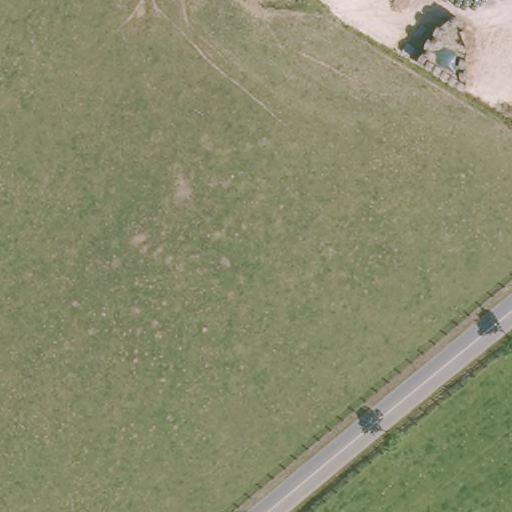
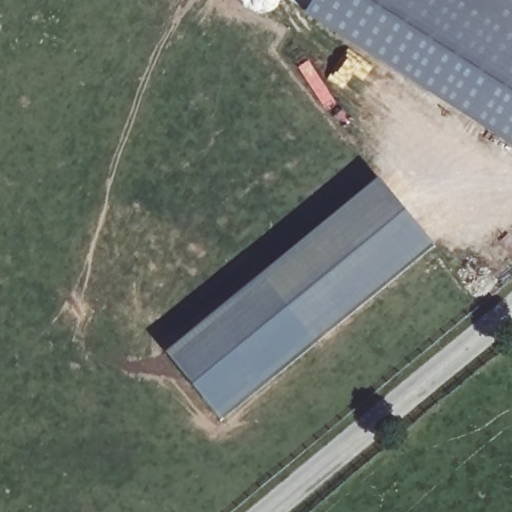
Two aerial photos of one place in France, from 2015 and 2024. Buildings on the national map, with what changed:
new [(512,1),(512,144),(311,15),(320,0),(510,0),(512,1)]
new [(224,419),(170,354),(382,179),(437,244),(224,419)]

